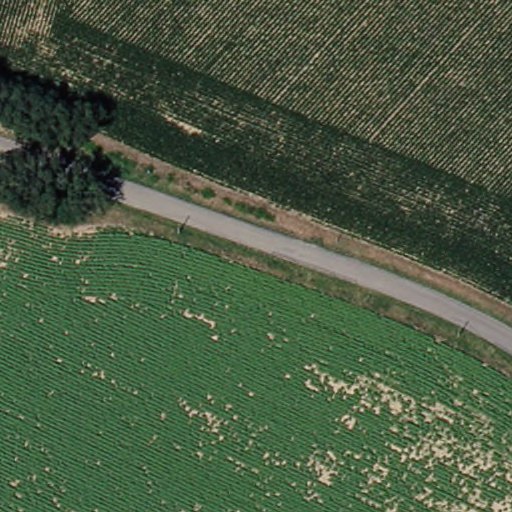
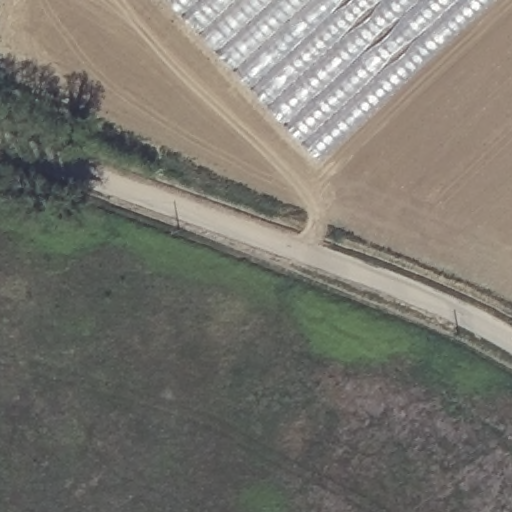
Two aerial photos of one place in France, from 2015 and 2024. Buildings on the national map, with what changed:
new [(170,0),(498,0),(322,163),(170,0)]

